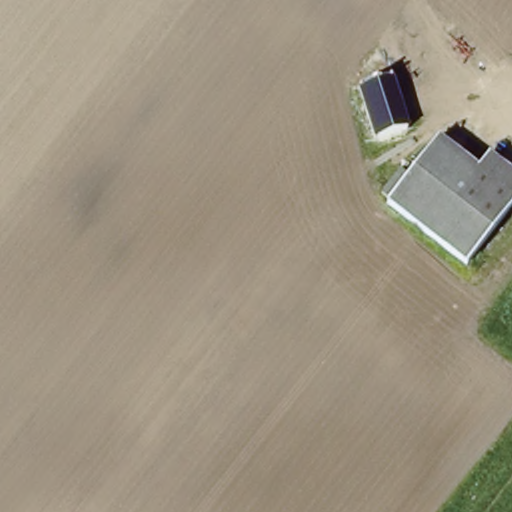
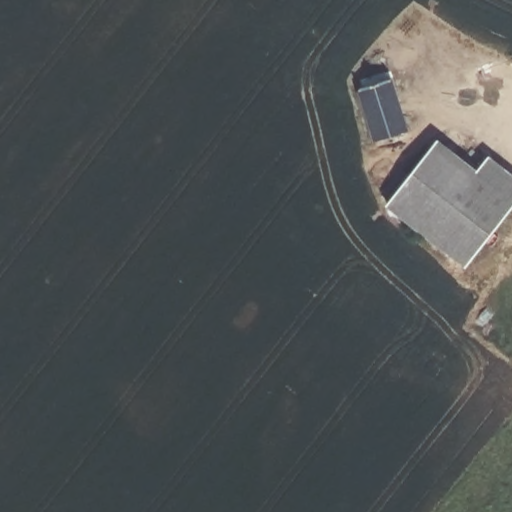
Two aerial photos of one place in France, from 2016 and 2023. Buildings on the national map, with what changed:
unchanged [(355,89),(385,79),(402,126),(370,135),(355,89)]
unchanged [(512,207),(460,265),(385,198),(395,187),(437,137),(477,171),(492,153),(512,173),(512,207)]

